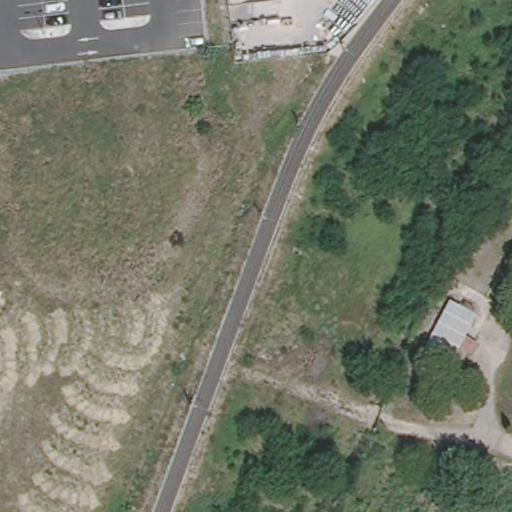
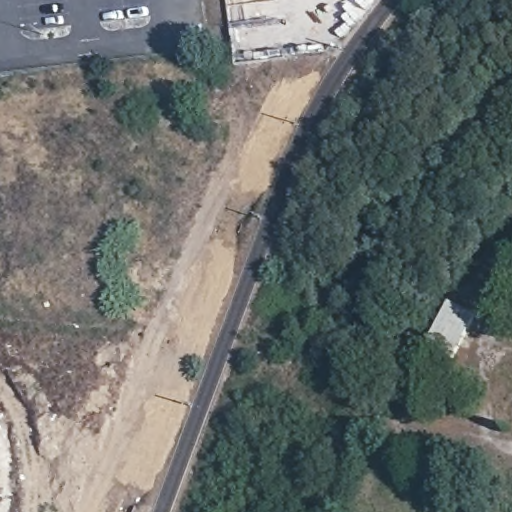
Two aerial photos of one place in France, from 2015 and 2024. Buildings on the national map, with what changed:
unchanged [(450,298),(463,305),(466,298),(483,307),(480,316),(459,362),(428,345),(450,298)]

